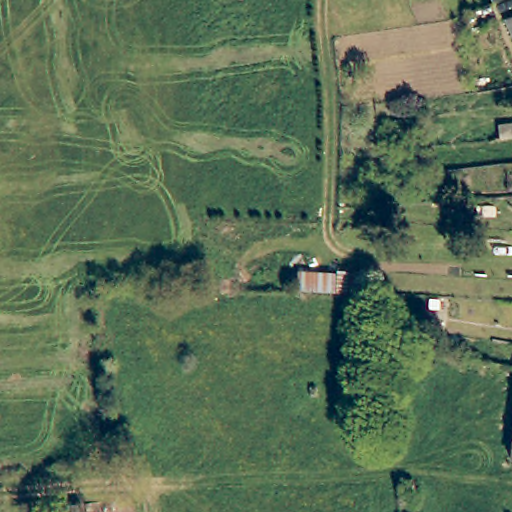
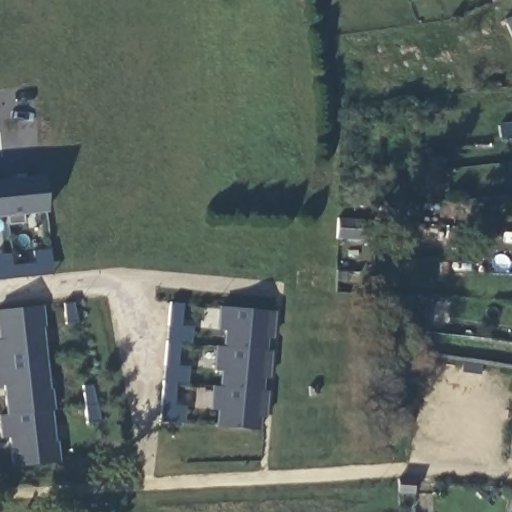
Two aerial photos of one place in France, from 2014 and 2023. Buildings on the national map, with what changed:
unchanged [(491,0),(501,0),(492,3),(491,0)]
unchanged [(512,130),(512,143),(496,144),(495,132),(512,130)]
new [(24,214),(24,223),(9,224),(7,216),(0,217),(0,180),(43,176),(48,212),(24,214)]
new [(0,280),(0,255),(10,254),(12,265),(35,262),(34,251),(50,250),(54,274),(0,280)]
demolished [(310,273),(347,274),(347,292),(337,292),(310,292),(310,273)]
new [(161,421),(169,302),(183,304),(181,326),(192,327),(191,344),(180,343),(177,366),(190,367),(188,384),(176,383),(174,406),(185,407),(185,423),(161,421)]
new [(217,427),(218,410),(210,409),(212,386),(220,386),(221,370),(214,369),(216,346),(224,347),(225,330),(217,329),(220,306),(275,311),(273,338),(267,337),(266,351),(272,351),(270,378),(263,377),(262,391),(268,392),(266,417),(261,417),(260,430),(217,427)]
new [(44,327),(50,391),(53,391),(55,410),(52,411),(55,443),(57,443),(60,462),(12,467),(10,438),(2,438),(0,420),(0,416),(9,415),(5,384),(0,385),(0,310),(44,307),(45,327),(44,327)]
unchanged [(511,455),(512,446),(512,456),(511,455)]
unchanged [(395,480),(410,481),(410,494),(395,494),(395,480)]

